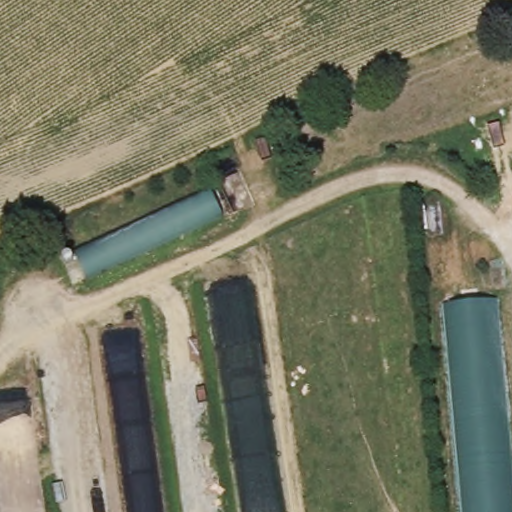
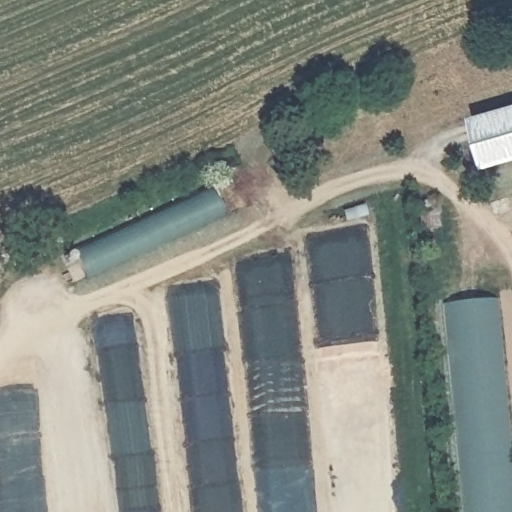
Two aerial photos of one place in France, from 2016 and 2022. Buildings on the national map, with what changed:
new [(472,119),(512,107),(512,161),(485,169),(472,119)]
unchanged [(87,282),(74,252),(211,190),(224,221),(87,282)]
unchanged [(512,512),(475,512),(444,304),(494,296),(512,419),(512,512)]

